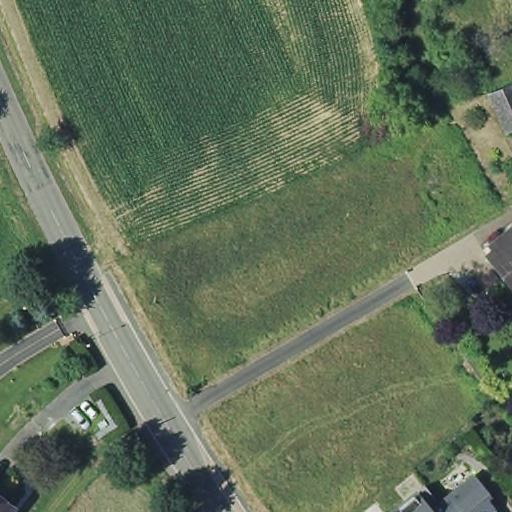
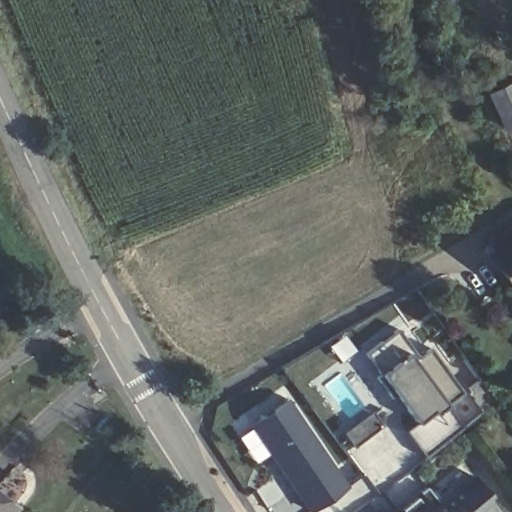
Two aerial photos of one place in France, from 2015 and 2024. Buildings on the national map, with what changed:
unchanged [(512,101),(512,127),(508,128),(491,91),(511,81),(512,84),(512,98),(511,98),(512,101)]
unchanged [(512,277),(493,254),(512,240),(512,277)]
new [(405,430),(417,421),(380,372),(365,353),(398,329),(418,357),(430,348),(463,392),(447,404),(463,426),(423,454),(405,430)]
new [(309,512),(250,422),(288,397),(349,487),(313,512),(309,512)]
unchanged [(488,497),(498,512),(377,512),(409,487),(416,494),(425,485),(437,500),(472,472),(492,493),(488,497)]
unchanged [(15,510),(14,512),(0,512),(0,499),(15,510)]

